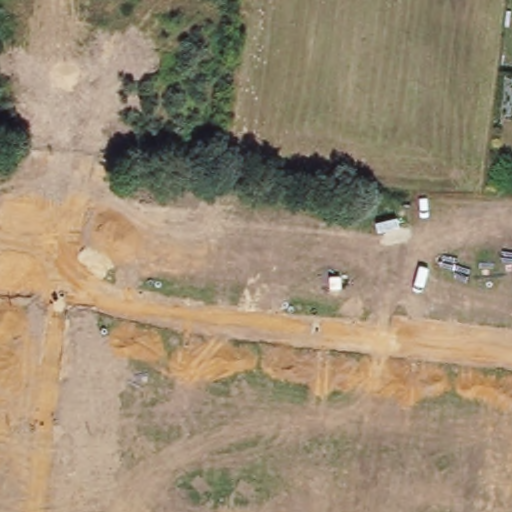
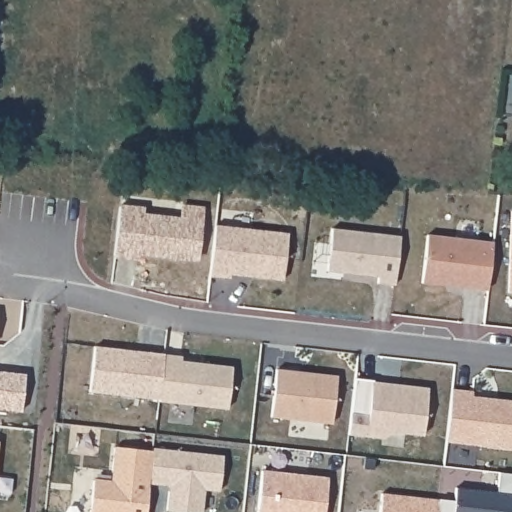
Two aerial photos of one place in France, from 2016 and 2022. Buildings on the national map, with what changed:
new [(120,206),(142,209),(141,214),(181,219),(183,207),(202,209),(196,258),(137,252),(136,258),(114,255),(120,206)]
new [(512,212),(512,293),(508,293),(512,212)]
new [(215,226),(288,234),(283,280),(230,275),(230,279),(209,277),(215,226)]
new [(332,229),(400,237),(395,285),(376,284),(377,278),(327,272),(332,229)]
new [(427,235),(493,243),(487,291),(471,289),(471,284),(445,281),(444,285),(422,284),(427,235)]
new [(95,347),(164,355),(159,399),(90,392),(95,347)]
new [(159,399),(164,355),(181,357),(181,362),(232,368),(227,409),(159,402),(159,399)]
new [(293,372),(299,373),(337,377),(332,424),(271,417),(276,370),(293,372)]
new [(0,410),(0,372),(25,375),(20,412),(0,410)]
new [(373,381),(373,383),(399,386),(428,389),(422,436),(392,433),(382,439),(348,435),(354,379),(373,381)]
new [(452,389),(473,392),(472,397),(512,401),(512,450),(446,443),(452,389)]
new [(94,481),(111,483),(115,448),(153,452),(149,484),(146,512),(90,512),(94,481)]
new [(153,452),(153,449),(223,457),(219,492),(204,489),(201,512),(182,512),(167,511),(170,486),(149,484),(153,452)]
new [(262,471),(328,479),(324,512),(257,512),(262,471)]
new [(456,488),(497,493),(499,473),(512,474),(512,512),(453,512),(456,488)]
new [(382,494),(439,501),(437,512),(380,512),(382,494)]

